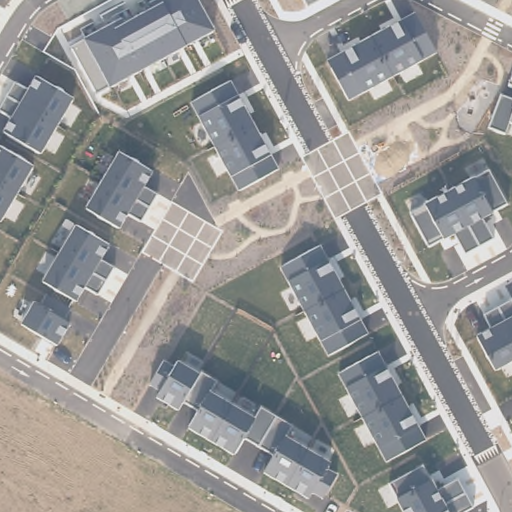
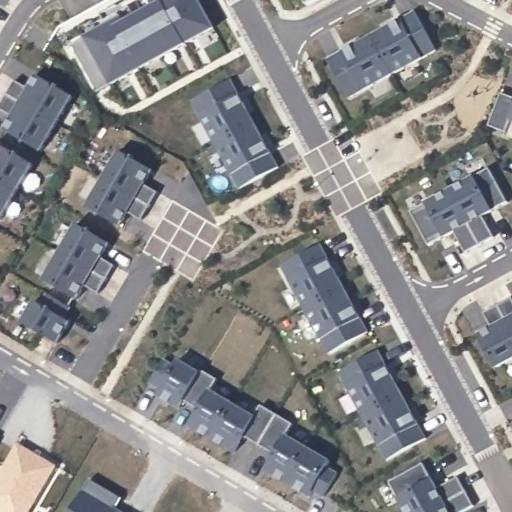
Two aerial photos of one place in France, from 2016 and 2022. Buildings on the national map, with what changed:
unchanged [(97,93),(72,43),(85,37),(121,17),(125,22),(156,6),(152,0),(153,0),(200,0),(216,28),(110,86),(97,93)]
unchanged [(310,4),(307,0),(318,0),(310,4)]
unchanged [(436,52),(349,99),(327,58),(415,12),(436,52)]
unchanged [(12,116),(0,108),(14,81),(28,89),(36,75),(73,97),(41,152),(4,129),(12,116)]
unchanged [(279,167),(238,191),(191,101),(231,79),(279,167)]
unchanged [(505,131),(492,126),(502,95),(512,99),(512,120),(511,119),(505,131)]
unchanged [(33,166),(1,220),(0,220),(0,148),(33,166)]
unchanged [(145,185),(157,192),(141,219),(129,211),(121,227),(88,206),(118,152),(154,171),(145,185)]
unchanged [(410,211),(490,169),(508,203),(492,211),(482,216),(493,237),(466,251),(457,232),(445,237),(428,246),(410,211)]
unchanged [(102,259),(114,265),(99,292),(86,286),(78,300),(45,279),(75,225),(110,245),(102,259)]
unchanged [(368,333),(329,353),(283,267),(321,244),(368,333)]
unchanged [(58,344),(23,322),(34,301),(41,305),(47,294),(71,307),(65,319),(71,323),(58,344)]
unchanged [(478,335),(493,327),(486,314),(512,299),(512,360),(496,368),(478,335)]
unchanged [(387,460),(340,373),(379,352),(426,440),(387,460)]
unchanged [(200,373),(201,370),(218,379),(212,391),(256,417),(262,407),(293,425),(287,436),(330,460),(326,467),(337,474),(325,496),(314,491),(310,496),(265,472),(275,455),(245,437),(234,452),(191,426),(200,410),(184,400),(179,408),(158,396),(163,388),(151,383),(164,359),(176,365),(178,360),(200,373)]
new [(0,512),(0,472),(17,441),(57,465),(30,512),(0,512)]
unchanged [(437,488),(458,477),(474,507),(465,512),(406,512),(389,483),(424,463),(433,479),(437,488)]
new [(124,498),(117,509),(122,512),(71,512),(84,489),(91,479),(124,498)]

